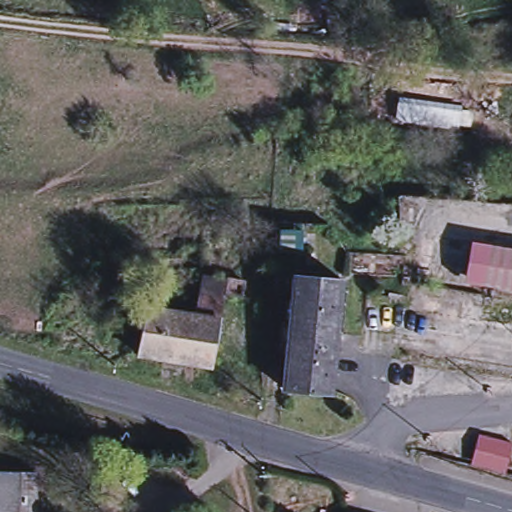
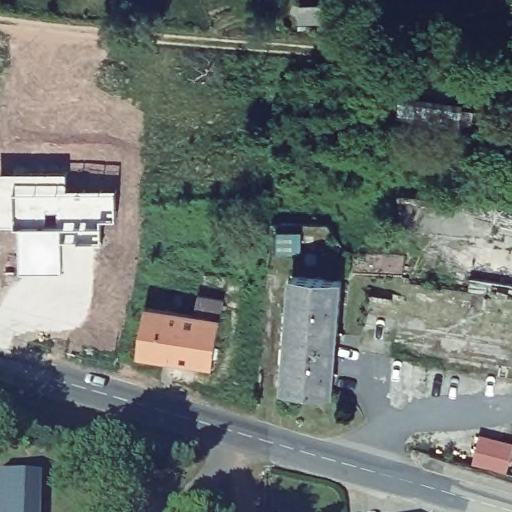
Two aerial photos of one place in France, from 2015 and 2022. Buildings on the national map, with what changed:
new [(65,194),(113,195),(113,224),(98,226),(100,246),(60,246),(62,277),(18,278),(18,232),(13,233),(13,229),(0,230),(0,177),(65,178),(65,194)]
unchanged [(468,279),(473,247),(512,254),(512,287),(468,279)]
unchanged [(345,280),(336,390),(290,383),(299,272),(345,280)]
unchanged [(203,294),(229,299),(225,320),(215,367),(185,360),(194,314),(199,315),(203,294)]
unchanged [(194,314),(185,360),(143,352),(152,305),(194,314)]
unchanged [(512,444),(512,452),(508,470),(473,461),(479,436),(512,444)]
unchanged [(41,512),(0,512),(0,493),(1,470),(43,471),(41,512)]

